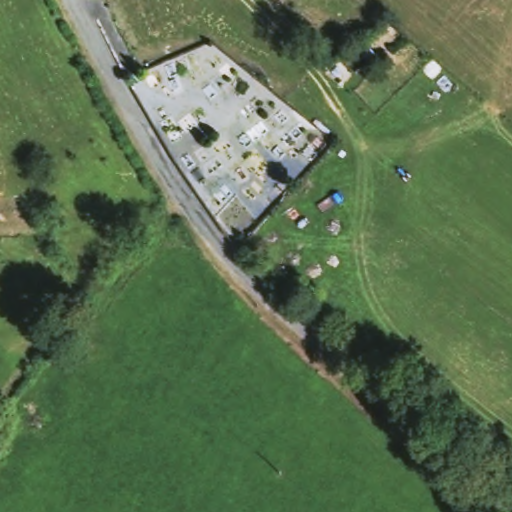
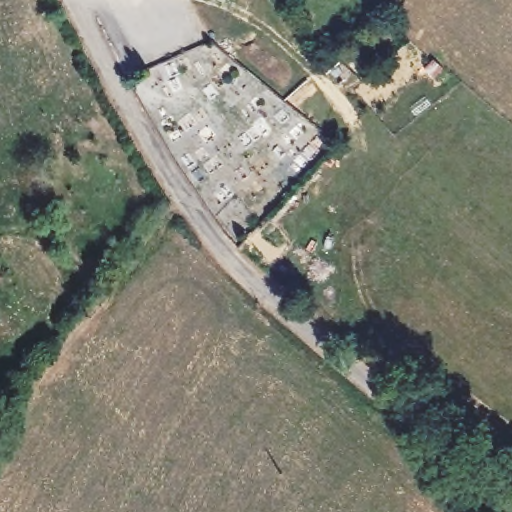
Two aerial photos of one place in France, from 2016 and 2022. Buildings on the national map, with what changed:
[]

